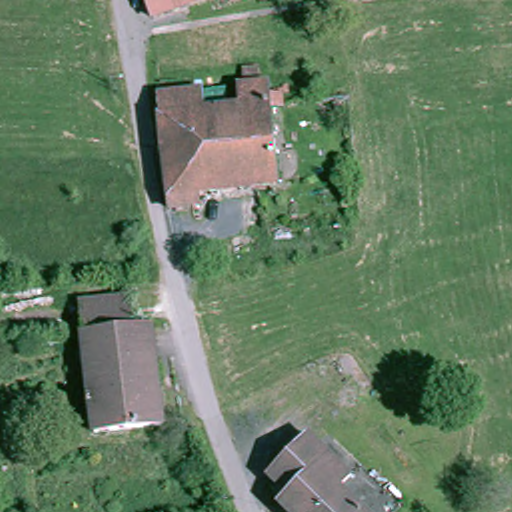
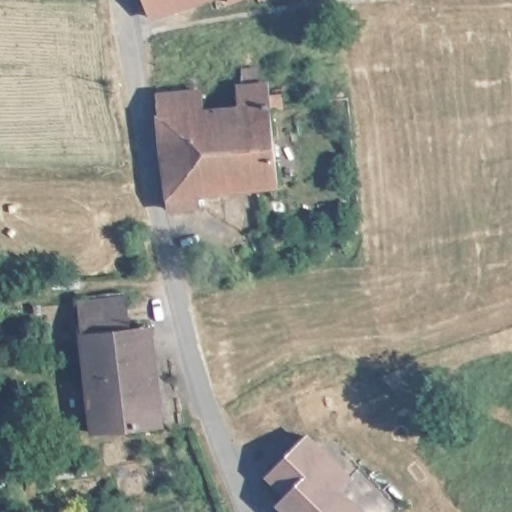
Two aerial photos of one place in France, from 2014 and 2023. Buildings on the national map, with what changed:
unchanged [(156,14),(151,0),(198,0),(156,14)]
unchanged [(211,109),(239,107),(246,107),(244,85),(275,82),(276,94),(286,93),(286,101),(276,102),(283,182),(203,187),(204,204),(174,207),(167,95),(208,90),(211,109)]
unchanged [(133,292),(137,327),(86,332),(84,297),(133,292)]
unchanged [(126,441),(125,429),(98,432),(86,332),(137,327),(151,326),(162,425),(137,427),(138,439),(126,441)]
unchanged [(298,490),(278,470),(316,432),(356,472),(344,484),(373,512),(303,512),(289,498),(298,490)]

